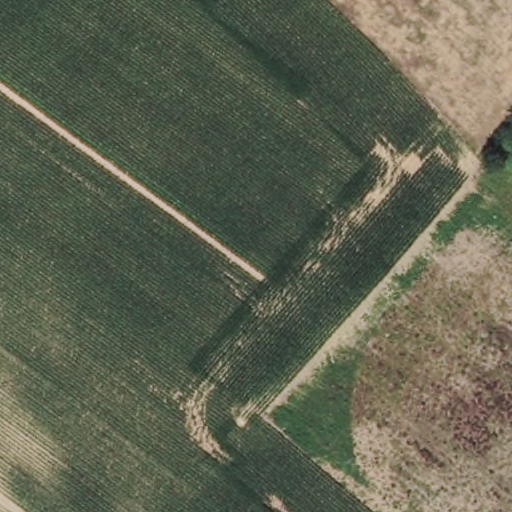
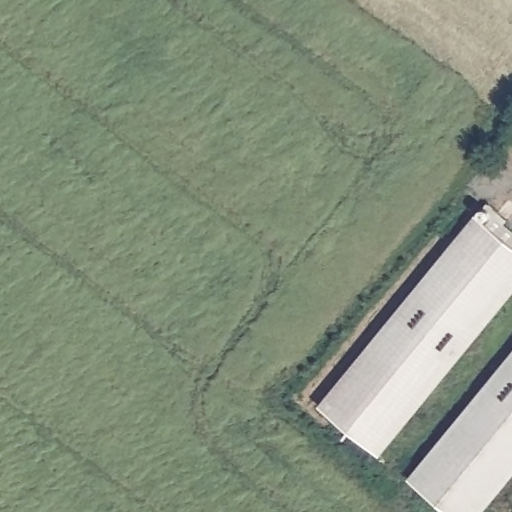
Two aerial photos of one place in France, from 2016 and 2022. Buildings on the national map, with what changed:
new [(475,215),(488,202),(508,220),(505,222),(512,228),(512,294),(381,456),(319,404),(475,215)]
new [(484,512),(452,512),(409,478),(512,352),(512,477),(484,512)]

